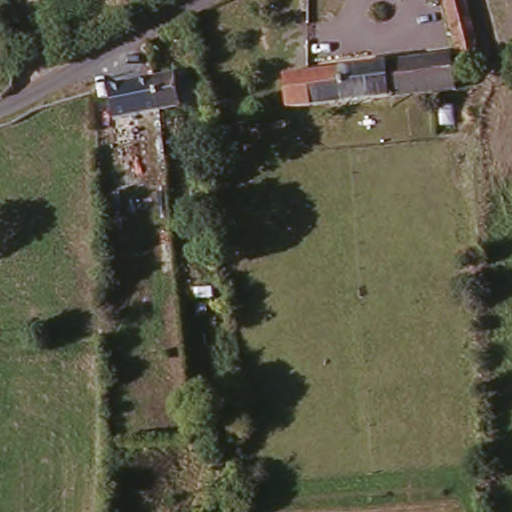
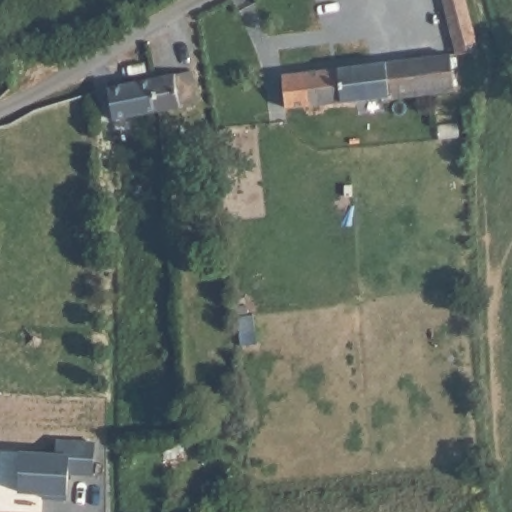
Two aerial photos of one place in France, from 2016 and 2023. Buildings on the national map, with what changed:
unchanged [(452,59),(436,0),(456,0),(470,57),(452,59)]
unchanged [(443,59),(450,95),(282,112),(279,79),(443,59)]
unchanged [(127,81),(148,77),(187,69),(194,103),(154,111),(133,115),(127,81)]
new [(57,452),(57,442),(95,443),(94,477),(70,475),(67,500),(42,498),(42,495),(20,493),(22,451),(57,452)]

